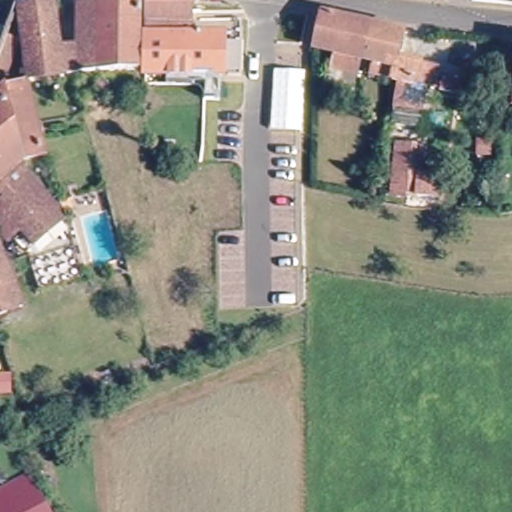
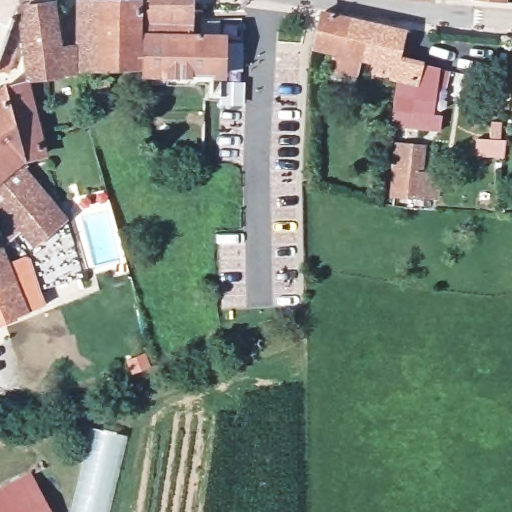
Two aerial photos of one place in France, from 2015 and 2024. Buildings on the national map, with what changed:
unchanged [(78,43),(73,1),(108,0),(132,0),(133,66),(80,69),(78,43)]
unchanged [(139,0),(188,0),(188,34),(139,34),(139,0)]
unchanged [(471,0),(502,0),(502,3),(471,0)]
unchanged [(15,10),(52,4),(60,45),(78,43),(80,69),(28,77),(15,10)]
unchanged [(355,57),(351,72),(331,67),(333,52),(319,48),(315,47),(322,11),(371,20),(363,59),(355,57)]
unchanged [(400,66),(374,61),(363,59),(371,20),(406,28),(401,60),(400,66)]
unchanged [(212,35),(211,71),(140,70),(139,34),(188,34),(212,35)]
unchanged [(398,106),(402,79),(373,72),(374,61),(400,66),(401,60),(444,69),(442,86),(423,83),(423,89),(433,90),(430,111),(398,106)]
unchanged [(0,222),(0,88),(26,84),(35,140),(31,151),(26,159),(18,159),(34,179),(50,201),(62,217),(29,244),(15,226),(8,231),(0,222)]
unchanged [(509,113),(510,104),(512,85),(512,113),(509,113)]
unchanged [(397,144),(427,146),(421,200),(389,197),(397,144)]
unchanged [(0,251),(6,265),(21,307),(0,314),(0,251)]
new [(83,447),(89,426),(129,436),(109,512),(70,512),(83,447)]
unchanged [(1,487),(31,472),(53,512),(14,512),(1,487)]
unchanged [(14,512),(0,512),(0,487),(1,487),(14,512)]

